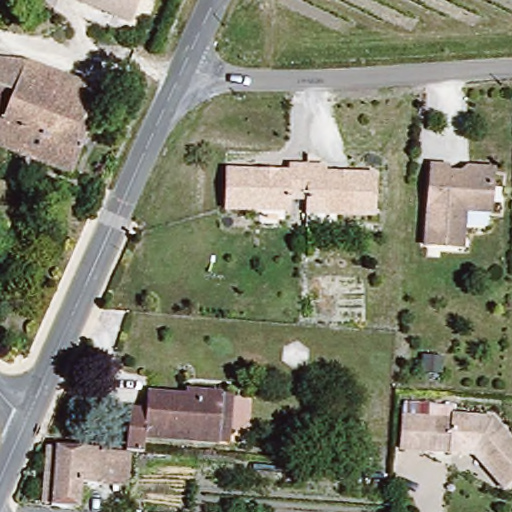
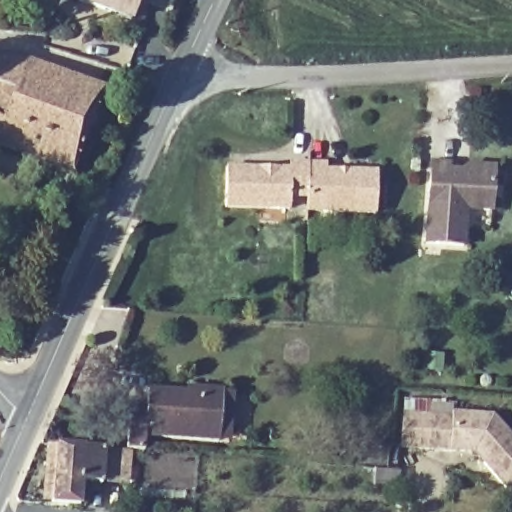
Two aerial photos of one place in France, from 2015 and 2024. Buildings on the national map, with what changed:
unchanged [(126,20),(86,0),(136,0),(126,20)]
unchanged [(96,105),(67,177),(0,147),(0,67),(29,75),(96,105)]
unchanged [(463,213),(459,250),(422,245),(429,166),(446,169),(444,173),(459,175),(466,170),(492,173),(492,180),(488,215),(463,213)]
unchanged [(288,200),(285,202),(284,213),(222,209),(225,170),(287,175),(288,169),(322,172),(322,175),(374,180),(371,221),(303,215),(304,201),(288,200)]
unchanged [(424,360),(443,361),(443,376),(424,375),(424,360)]
unchanged [(145,413),(145,391),(212,392),(210,435),(154,434),(154,450),(125,449),(128,413),(145,413)]
unchanged [(406,413),(451,417),(455,413),(496,417),(512,436),(512,483),(508,486),(486,462),(490,458),(483,450),(473,450),(473,452),(403,445),(406,413)]
unchanged [(94,447),(92,483),(71,483),(70,506),(40,505),(44,446),(94,447)]

